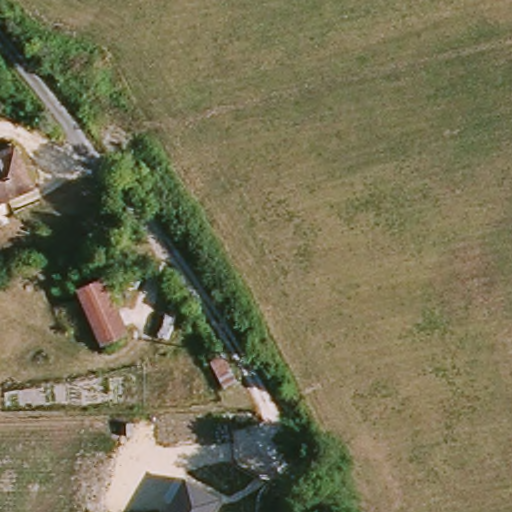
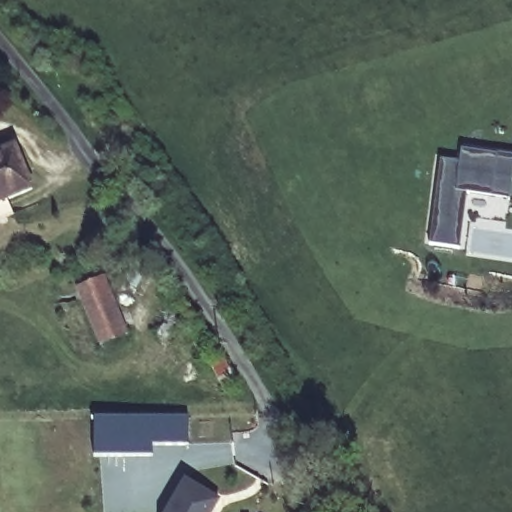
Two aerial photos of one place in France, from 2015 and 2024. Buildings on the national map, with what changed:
unchanged [(32,188),(0,202),(0,154),(15,148),(32,188)]
new [(461,149),(512,156),(512,197),(511,200),(468,194),(461,248),(429,244),(438,160),(459,163),(461,149)]
unchanged [(102,278),(125,334),(100,344),(76,288),(102,278)]
new [(95,416),(189,415),(189,440),(152,444),(153,451),(95,455),(95,416)]
unchanged [(214,512),(166,512),(185,479),(221,501),(214,512)]

